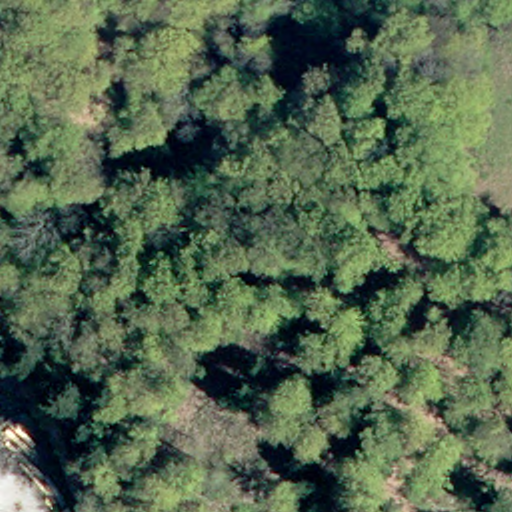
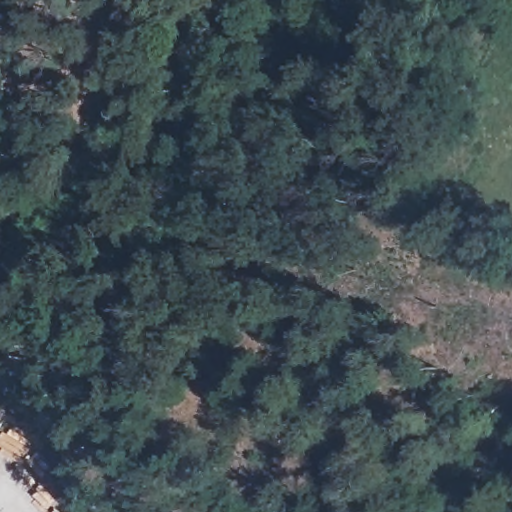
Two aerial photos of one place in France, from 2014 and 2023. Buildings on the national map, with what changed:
[]

